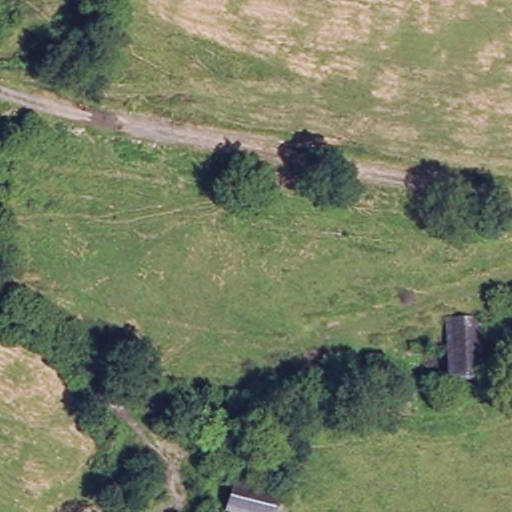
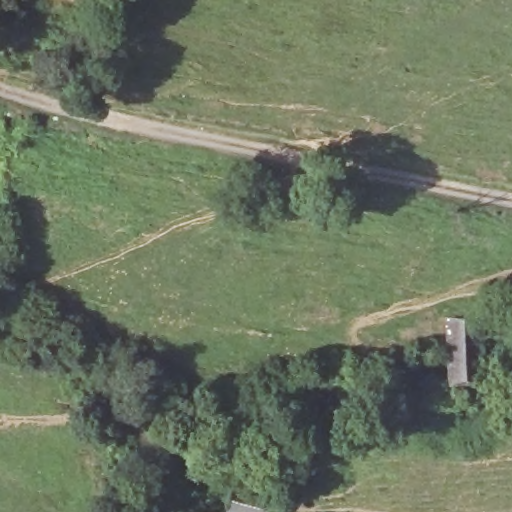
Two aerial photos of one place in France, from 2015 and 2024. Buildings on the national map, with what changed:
unchanged [(448,316),(484,316),(480,380),(443,383),(448,329),(448,316)]
unchanged [(275,512),(225,512),(224,484),(277,494),(275,512)]

